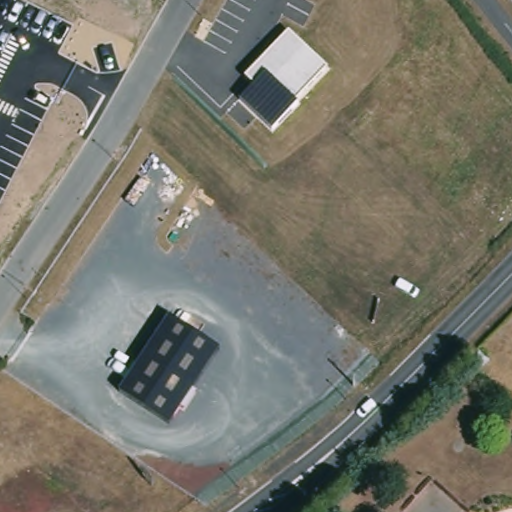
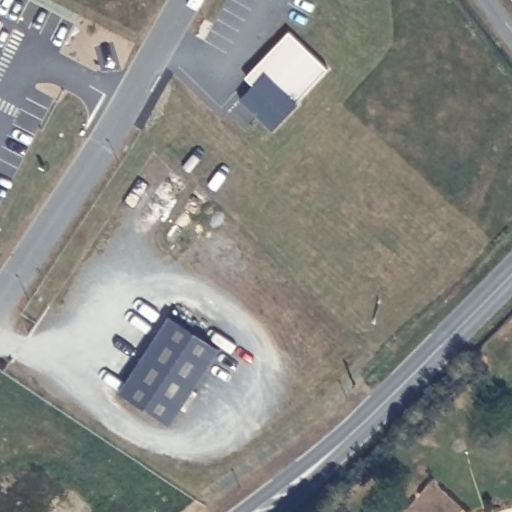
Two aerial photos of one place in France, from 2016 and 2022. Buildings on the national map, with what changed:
unchanged [(241,99),(253,85),(245,77),(288,33),(326,69),(294,102),(297,104),(272,131),(241,99)]
unchanged [(174,425),(120,391),(171,316),(222,348),(174,425)]

